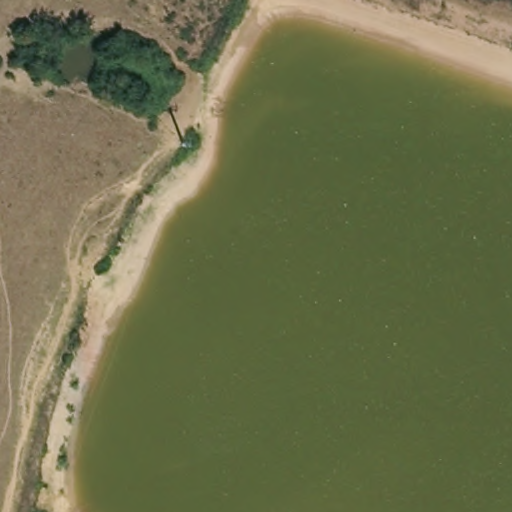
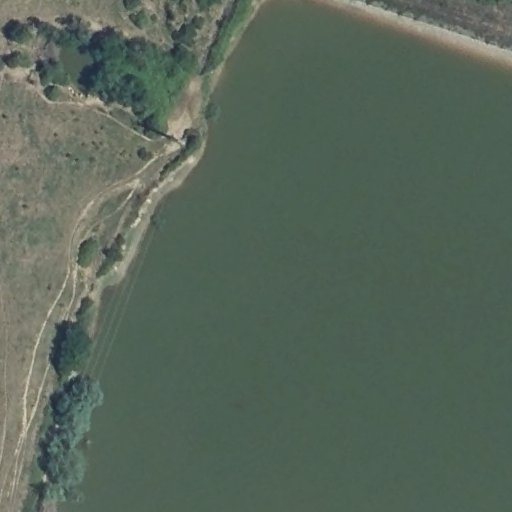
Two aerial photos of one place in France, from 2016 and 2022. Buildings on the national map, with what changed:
[]

